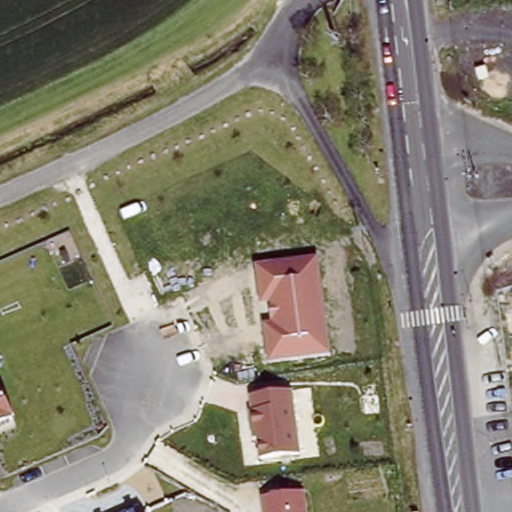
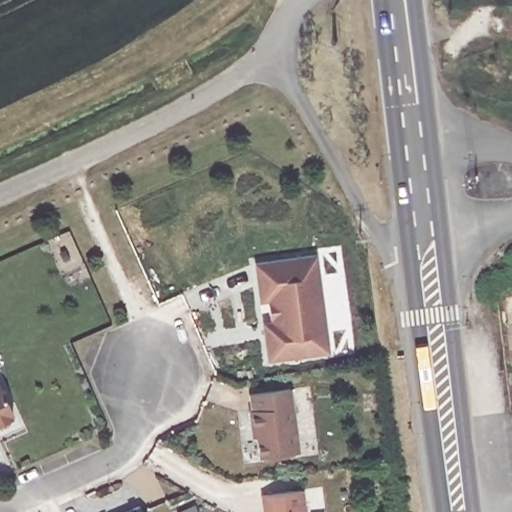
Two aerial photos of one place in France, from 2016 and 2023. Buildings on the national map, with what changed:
unchanged [(320,254),(331,353),(267,360),(255,263),(320,254)]
unchanged [(15,419),(0,425),(0,384),(15,419)]
unchanged [(290,387),(300,453),(259,457),(247,394),(290,387)]
unchanged [(302,489),(305,512),(262,512),(260,492),(302,489)]
unchanged [(140,506),(143,512),(126,512),(140,506)]

